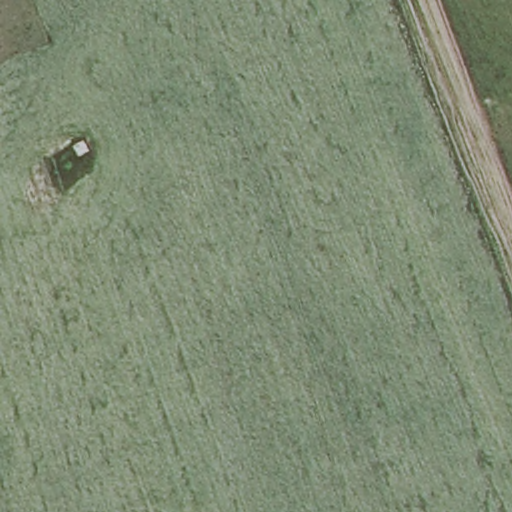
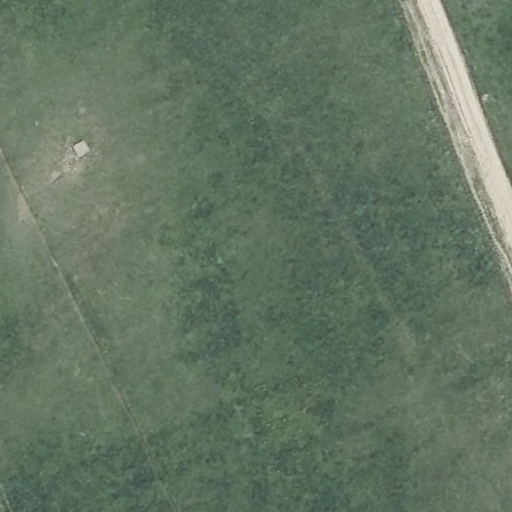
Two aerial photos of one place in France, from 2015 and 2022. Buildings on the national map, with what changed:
[]

